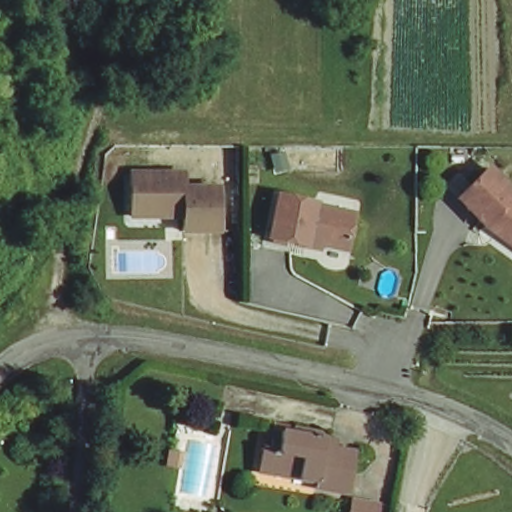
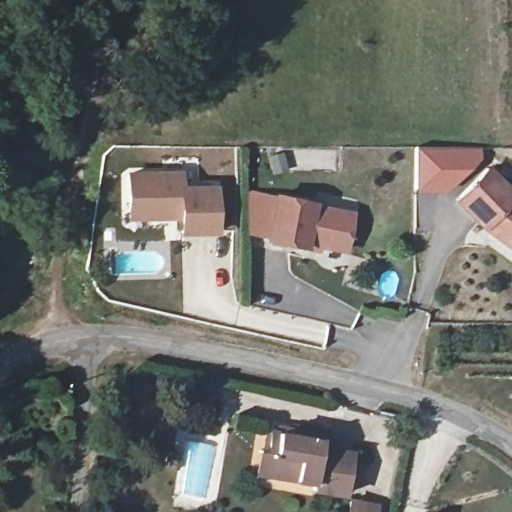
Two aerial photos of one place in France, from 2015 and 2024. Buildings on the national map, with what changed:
new [(414,146),(481,147),(482,159),(448,194),(413,192),(414,146)]
unchanged [(480,220),(453,192),(485,162),(512,188),(512,189),(509,192),(512,194),(512,242),(480,220)]
unchanged [(127,200),(128,166),(180,167),(180,182),(214,182),(213,226),(178,225),(178,210),(160,210),(126,209),(127,200)]
unchanged [(301,237),(261,231),(269,187),(308,194),(307,196),(349,202),(343,239),(314,234),(314,240),(301,237)]
unchanged [(248,444),(255,445),(258,425),(282,429),(283,423),(313,429),(312,441),(343,447),(337,490),(302,484),(303,477),(261,470),(245,467),(248,444)]
unchanged [(165,429),(161,446),(148,442),(152,426),(165,429)]
unchanged [(370,512),(340,512),(342,499),(371,504),(370,512)]

